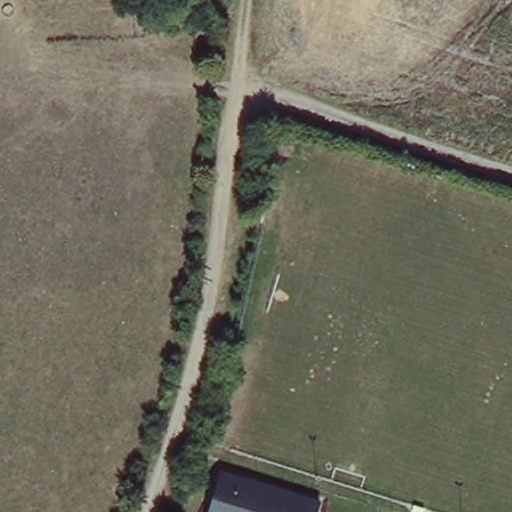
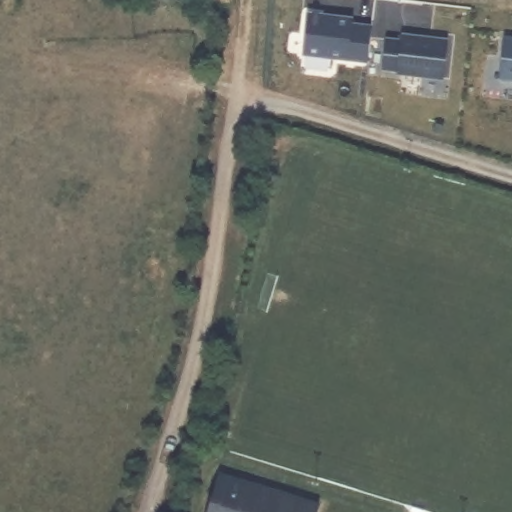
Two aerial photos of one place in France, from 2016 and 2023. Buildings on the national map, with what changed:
new [(364,60),(299,52),(304,11),(349,16),(349,22),(369,24),(364,60)]
new [(440,77),(394,71),(394,69),(379,67),(382,37),(397,38),(398,32),(445,38),(440,77)]
new [(496,77),(501,35),(512,36),(512,79),(496,77)]
unchanged [(316,512),(210,512),(221,478),(316,510),(316,512)]

